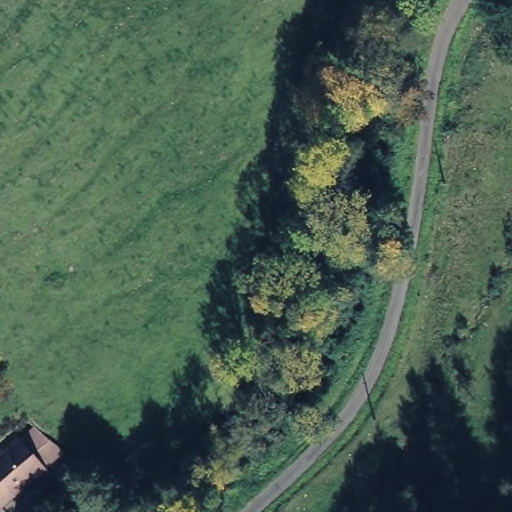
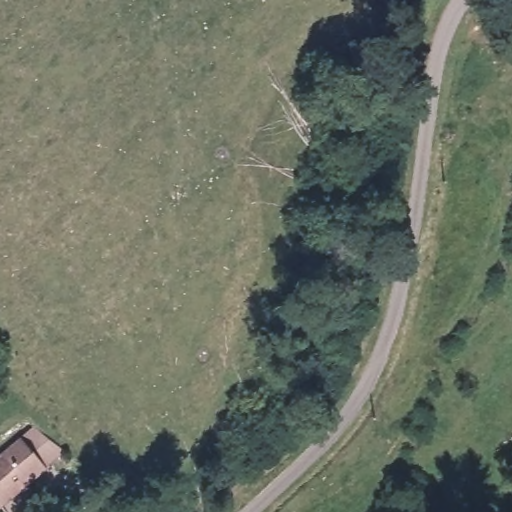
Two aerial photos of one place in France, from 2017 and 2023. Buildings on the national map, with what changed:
unchanged [(0,510),(0,449),(32,420),(62,453),(0,510)]

